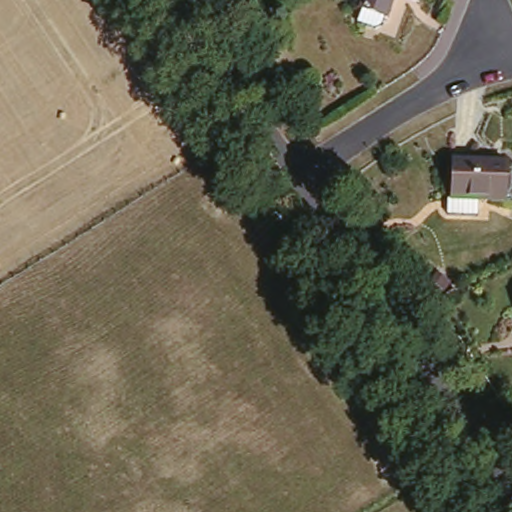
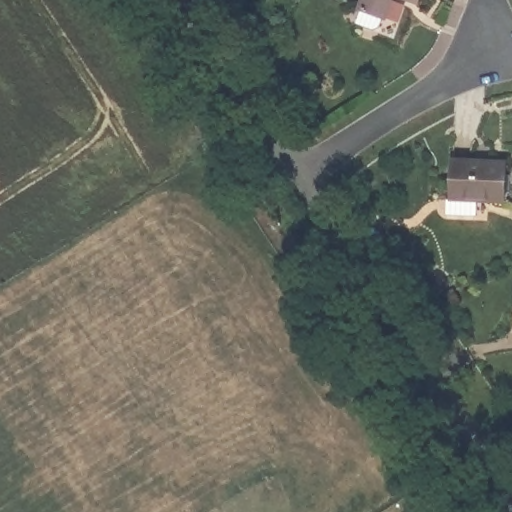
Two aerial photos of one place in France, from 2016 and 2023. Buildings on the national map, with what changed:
unchanged [(366,0),(394,0),(392,14),(364,11),(366,0)]
unchanged [(511,159),(509,197),(484,197),(484,212),(453,211),(454,192),(458,192),(459,158),(511,159)]

